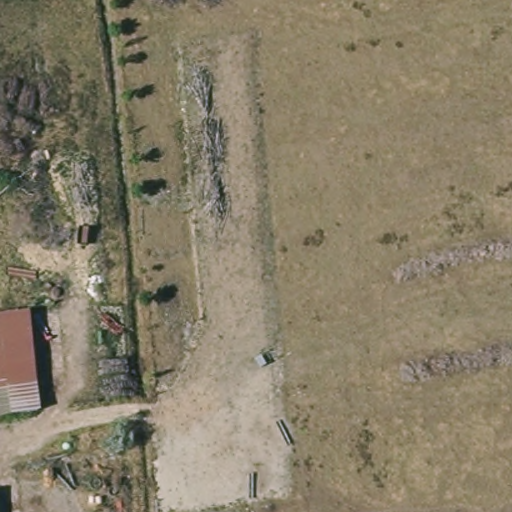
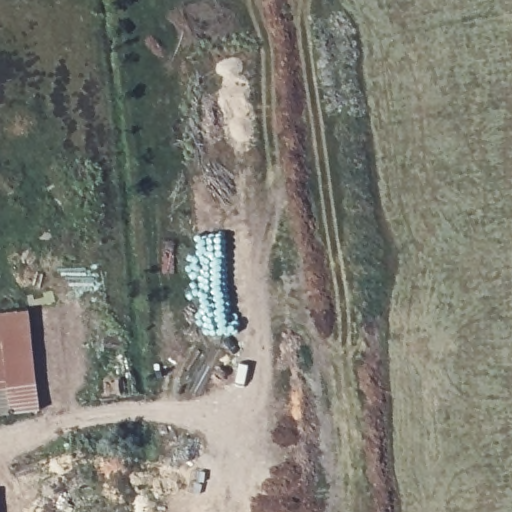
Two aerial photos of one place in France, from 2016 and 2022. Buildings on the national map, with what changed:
unchanged [(34,322),(35,428),(0,429),(0,322),(34,322)]

